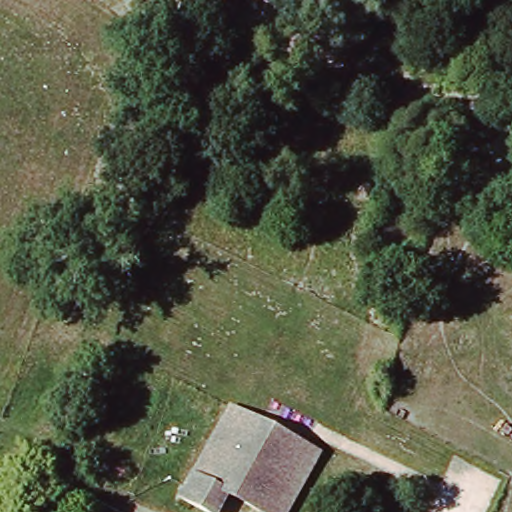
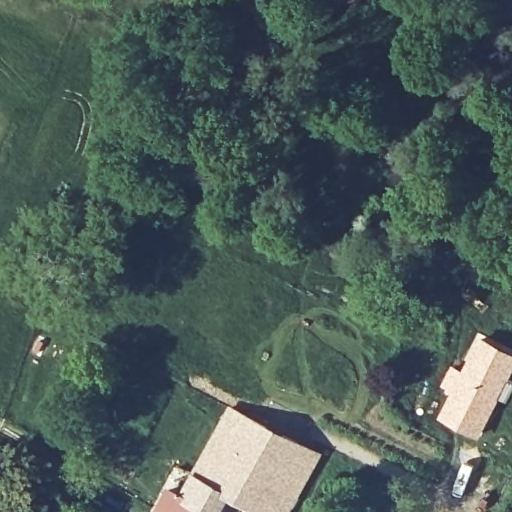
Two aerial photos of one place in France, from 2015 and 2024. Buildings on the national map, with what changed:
new [(450,393),(439,386),(452,364),(460,368),(477,333),(512,352),(512,372),(507,384),(511,387),(510,389),(512,390),(512,391),(506,403),(499,399),(477,441),(436,418),(450,393)]
unchanged [(174,499),(184,478),(219,408),(314,456),(286,512),(253,512),(221,496),(213,512),(199,512),(174,499)]

